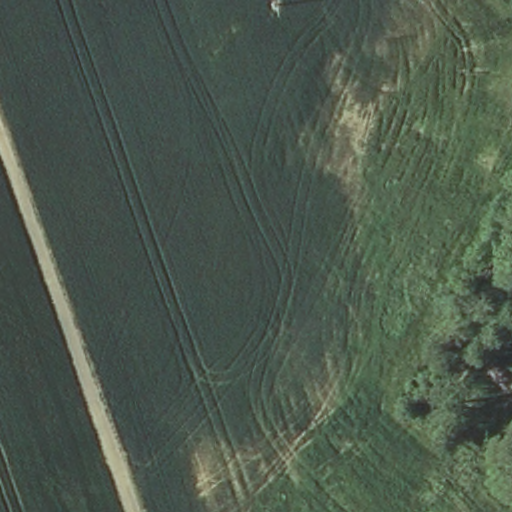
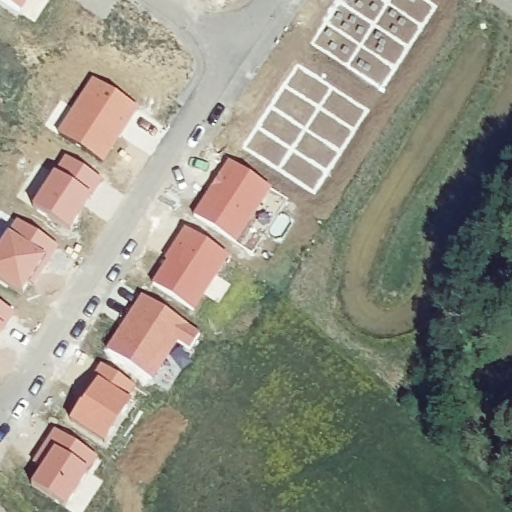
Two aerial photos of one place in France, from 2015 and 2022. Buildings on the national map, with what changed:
new [(22,9),(9,0),(28,0),(22,9)]
new [(138,107),(105,162),(58,132),(91,77),(138,107)]
new [(98,175),(71,225),(33,202),(65,155),(98,175)]
new [(229,158),(271,187),(237,241),(193,214),(229,158)]
new [(32,286),(27,283),(22,291),(0,276),(0,241),(16,217),(57,245),(32,286)]
new [(229,255),(197,308),(152,278),(186,227),(229,255)]
new [(142,295),(200,332),(190,348),(180,341),(154,377),(107,347),(142,295)]
new [(0,329),(0,302),(12,310),(0,329)]
new [(135,384),(128,395),(131,397),(105,438),(70,418),(100,362),(135,384)]
new [(98,457),(67,502),(32,481),(40,465),(32,460),(53,427),(98,457)]

